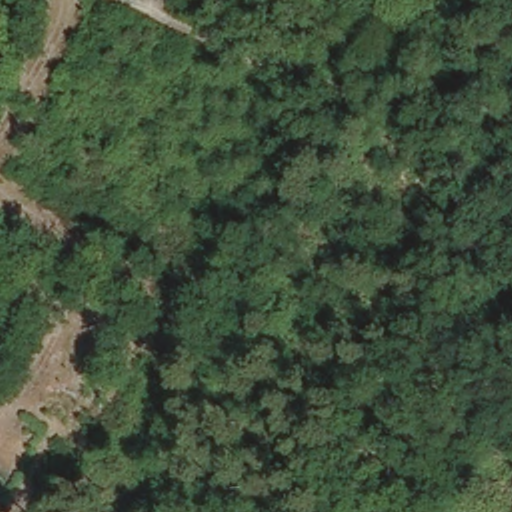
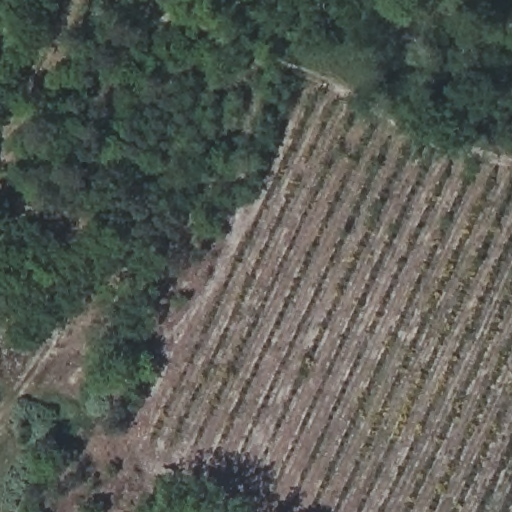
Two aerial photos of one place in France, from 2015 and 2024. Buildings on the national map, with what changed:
[]

